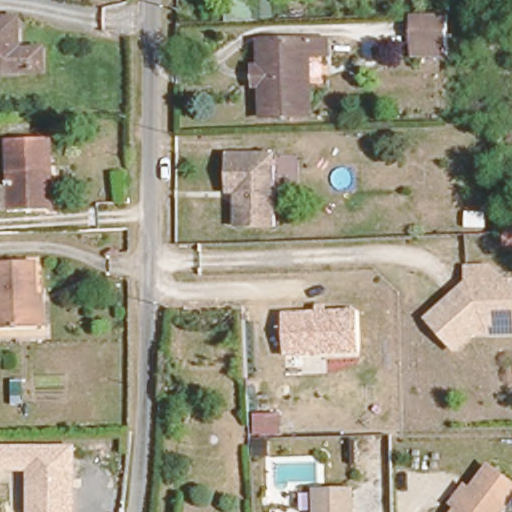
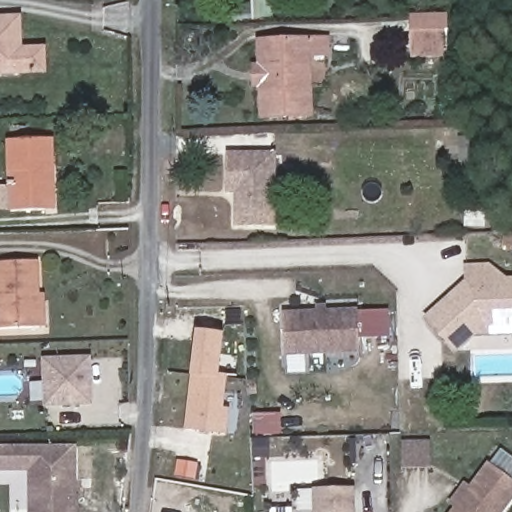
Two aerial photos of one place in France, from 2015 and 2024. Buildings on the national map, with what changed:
unchanged [(430,55),(429,44),(412,45),(411,9),(445,7),(446,42),(446,54),(430,55)]
unchanged [(43,41),(43,65),(0,66),(0,20),(20,20),(21,42),(43,41)]
unchanged [(326,51),(302,54),(306,111),(259,114),(257,84),(262,83),(260,61),(255,61),(253,37),(324,33),(326,51)]
unchanged [(45,207),(11,209),(6,139),(51,135),(53,170),(55,206),(45,207)]
unchanged [(225,186),(224,149),(276,147),(278,220),(234,222),(233,199),(232,186),(225,186)]
unchanged [(45,323),(3,326),(0,281),(0,258),(40,256),(45,323)]
unchanged [(442,345),(418,302),(433,294),(451,283),(453,286),(466,280),(486,278),(486,276),(512,275),(512,335),(455,337),(442,345)]
unchanged [(285,358),(285,314),(358,310),(359,355),(285,358)]
new [(195,333),(218,335),(215,376),(223,376),(221,410),(226,410),(225,432),(187,428),(195,333)]
new [(89,357),(93,403),(48,406),(44,360),(89,357)]
unchanged [(27,512),(27,474),(0,473),(0,446),(76,446),(76,512),(27,512)]
unchanged [(449,505),(464,483),(469,487),(487,465),(512,483),(512,503),(505,512),(452,512),(453,510),(449,505)]
unchanged [(356,490),(356,512),(314,512),(313,490),(356,490)]

